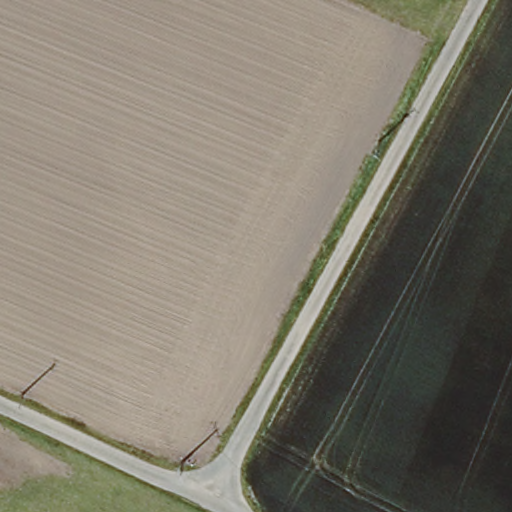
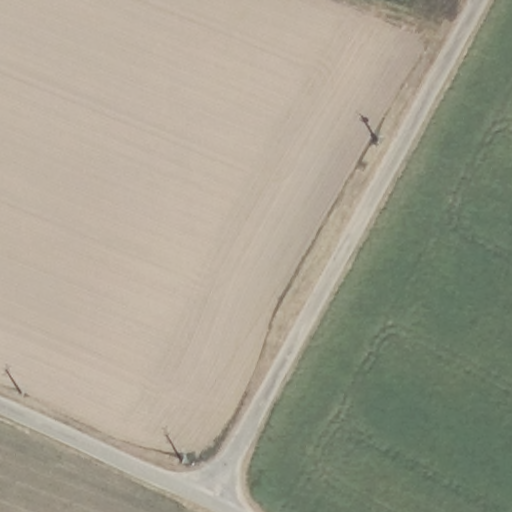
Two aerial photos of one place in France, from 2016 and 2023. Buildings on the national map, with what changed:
unchanged [(185,443),(195,447),(190,458),(180,454),(185,443)]

